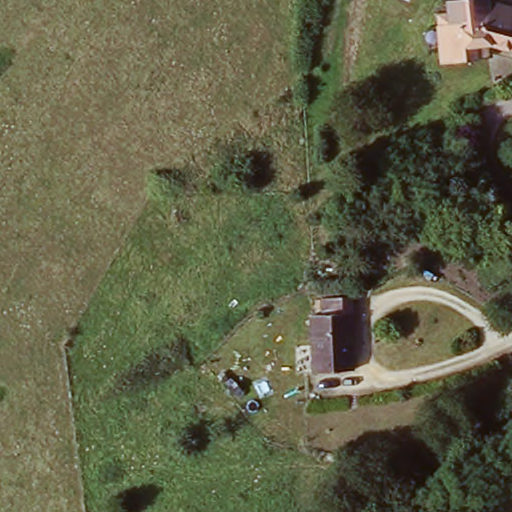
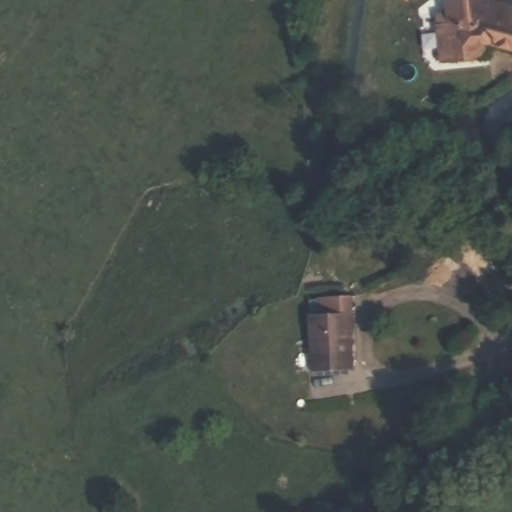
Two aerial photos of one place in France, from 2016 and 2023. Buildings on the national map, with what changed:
unchanged [(441,21),(441,0),(512,0),(512,47),(485,44),(485,56),(435,62),(432,22),(441,21)]
unchanged [(349,296),(350,330),(347,329),(348,370),(312,371),(310,312),(321,312),(320,297),(349,296)]

